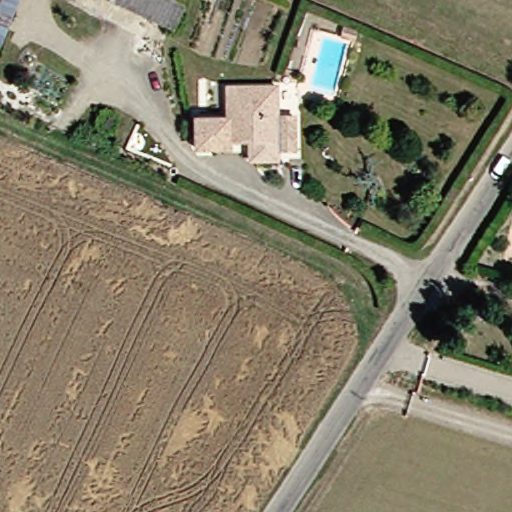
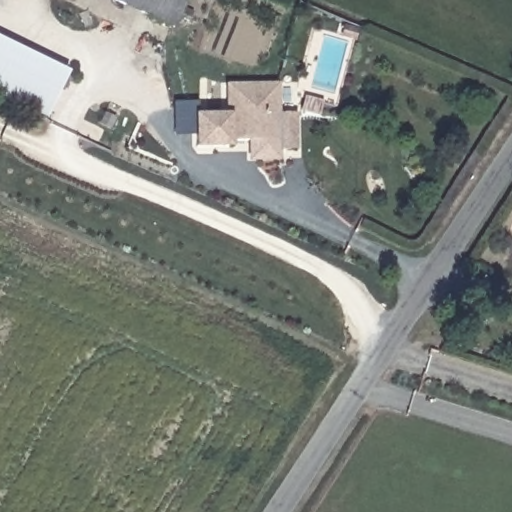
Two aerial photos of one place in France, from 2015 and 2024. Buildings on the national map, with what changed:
demolished [(21,0),(0,52),(0,0),(21,0)]
unchanged [(117,0),(120,0),(120,1),(117,0)]
unchanged [(120,1),(120,0),(187,0),(175,26),(120,1)]
unchanged [(328,38),(329,27),(341,28),(340,39),(328,38)]
new [(0,96),(0,40),(69,74),(47,119),(0,96)]
unchanged [(257,167),(257,160),(255,141),(234,142),(235,147),(204,150),(195,151),(195,146),(193,120),(232,116),(230,86),(275,82),(279,112),(297,110),(300,141),(282,144),(283,157),(284,165),(257,167)]

